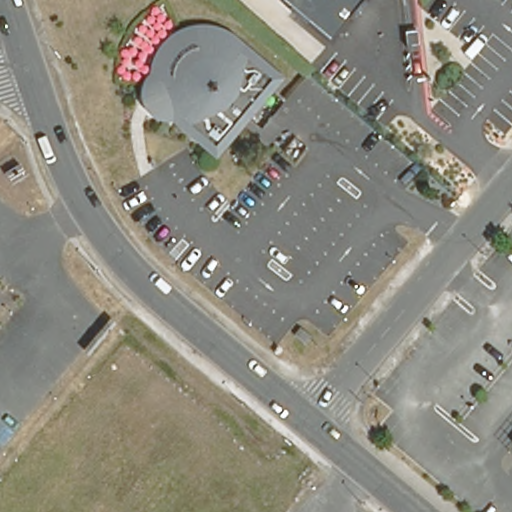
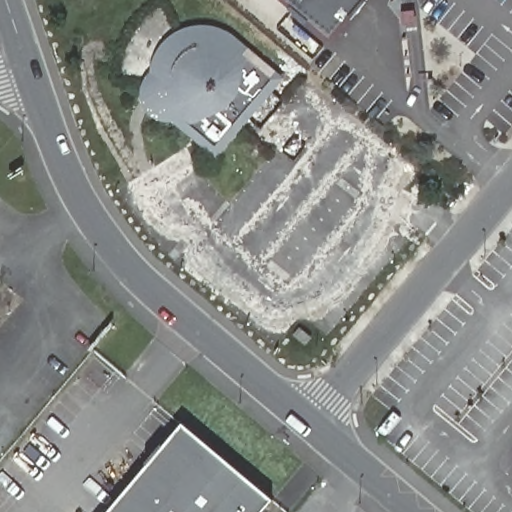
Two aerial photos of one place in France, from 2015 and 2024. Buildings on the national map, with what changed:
unchanged [(283,0),(359,0),(328,38),(283,0)]
unchanged [(281,76),(214,157),(171,117),(158,118),(146,111),(140,104),(138,94),(140,84),(147,72),(150,57),(156,44),(165,35),(175,29),(188,25),(203,24),(217,26),(228,31),(242,43),(281,76)]
new [(260,512),(104,512),(179,423),(271,499),(260,512)]

